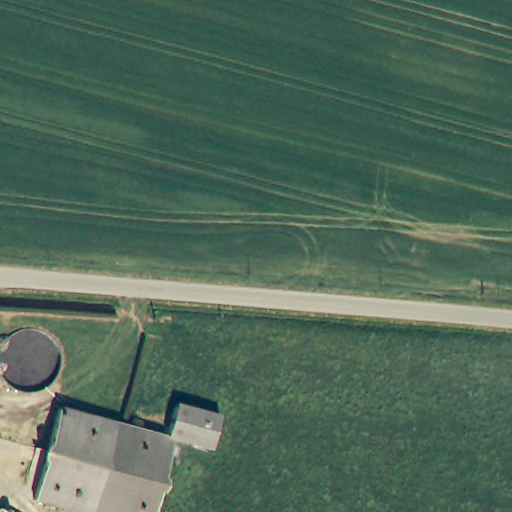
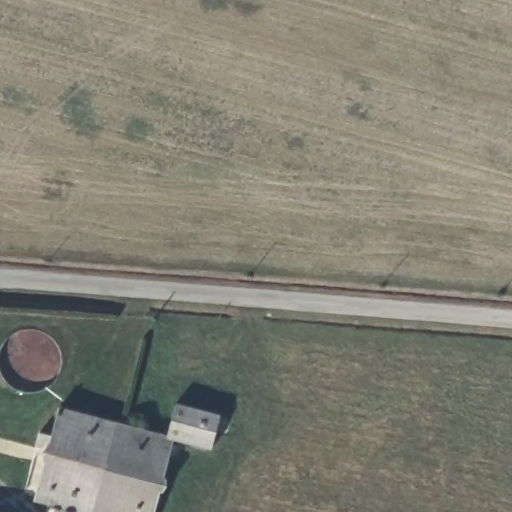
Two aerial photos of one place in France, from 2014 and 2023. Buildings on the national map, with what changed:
unchanged [(217,450),(186,442),(175,440),(176,438),(172,437),(180,405),(202,410),(225,416),(217,450)]
unchanged [(61,411),(172,437),(176,438),(175,440),(165,484),(158,512),(82,512),(38,501),(61,411)]

